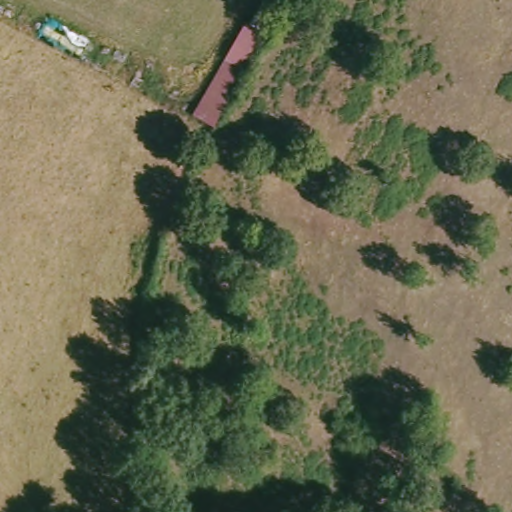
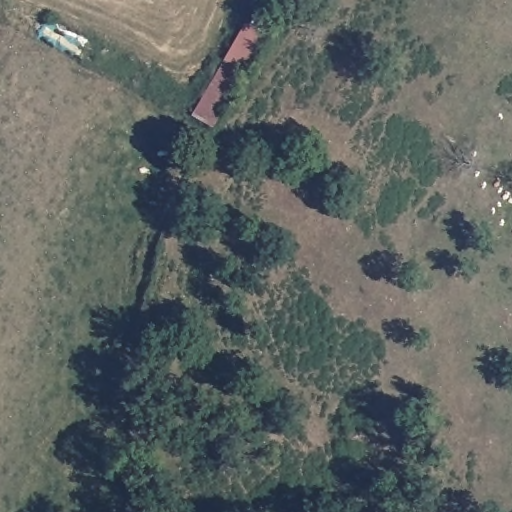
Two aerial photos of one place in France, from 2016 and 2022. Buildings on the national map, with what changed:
unchanged [(230,37),(245,19),(258,4),(277,17),(216,128),(190,110),(230,37)]

